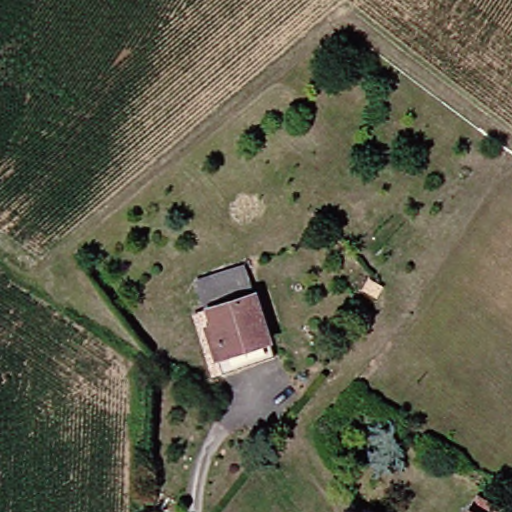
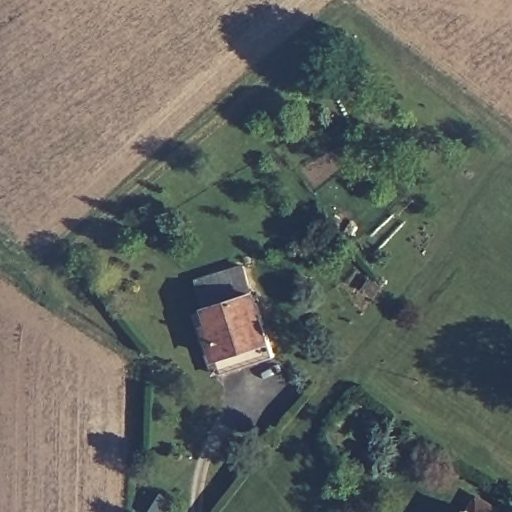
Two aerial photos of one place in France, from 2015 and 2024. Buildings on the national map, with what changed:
unchanged [(251,277),(272,354),(224,368),(209,290),(251,277)]
unchanged [(486,494),(506,512),(473,512),(486,494)]

